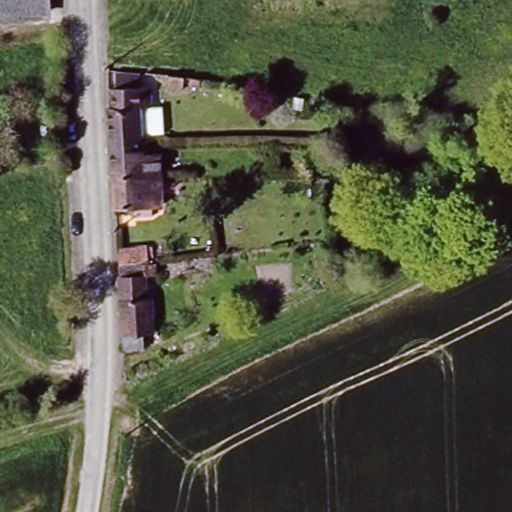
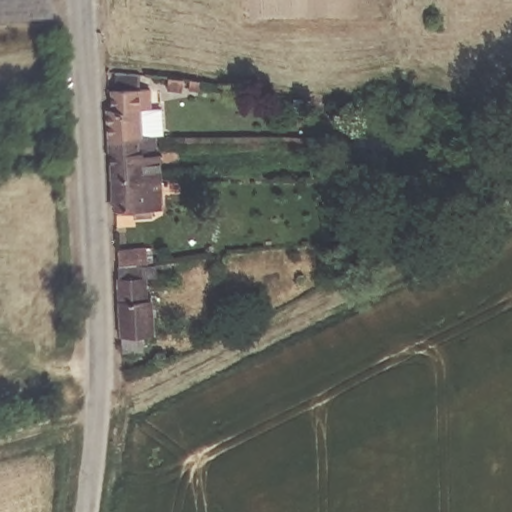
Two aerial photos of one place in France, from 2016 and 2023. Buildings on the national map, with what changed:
unchanged [(48,19),(0,20),(0,0),(48,0),(48,19)]
unchanged [(119,105),(119,84),(122,84),(121,67),(124,67),(143,66),(144,83),(153,83),(154,105),(145,105),(145,132),(158,131),(158,137),(112,139),(112,105),(119,105)]
unchanged [(158,137),(158,150),(159,156),(163,156),(164,180),(119,180),(115,180),(112,139),(158,137)]
unchanged [(164,180),(165,193),(160,193),(160,209),(150,209),(151,216),(138,216),(138,210),(120,211),(119,180),(164,180)]
unchanged [(145,342),(145,359),(127,359),(123,277),(122,261),(150,260),(151,274),(154,342),(145,342)]

